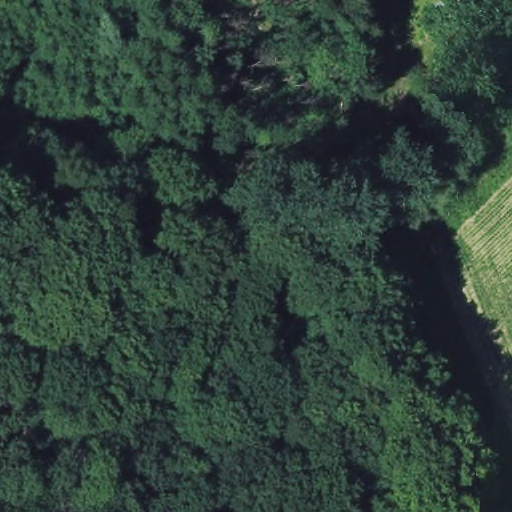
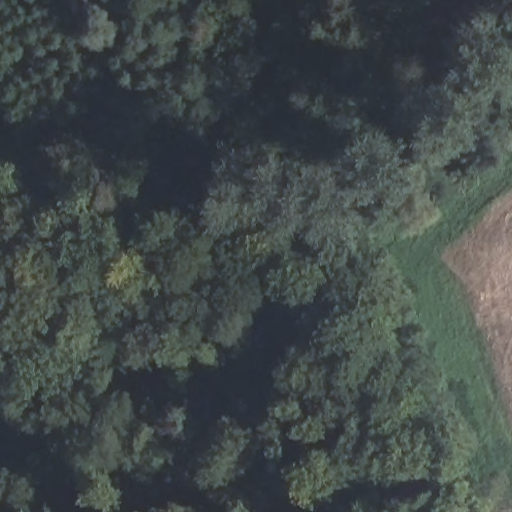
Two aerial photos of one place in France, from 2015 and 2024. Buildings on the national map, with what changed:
unchanged [(485,24),(463,31),(459,23),(444,26),(439,6),(454,0),(478,0),(485,24)]

